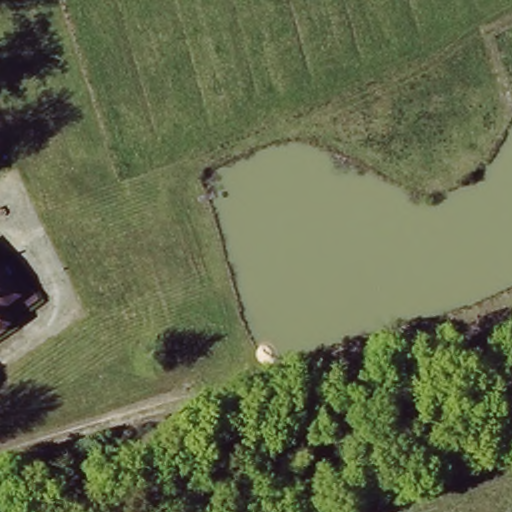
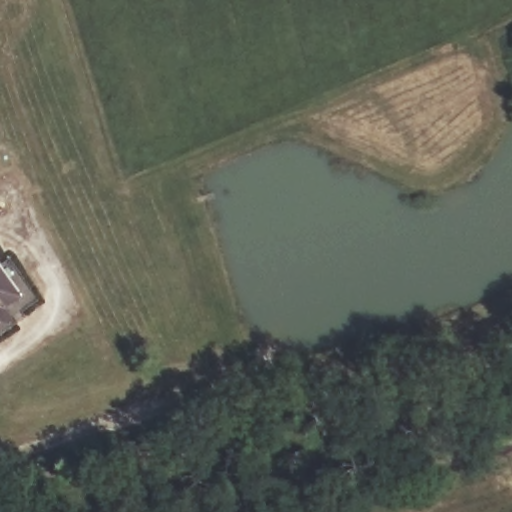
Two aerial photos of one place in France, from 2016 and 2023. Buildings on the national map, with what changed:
unchanged [(7,312),(15,326),(0,338),(0,261),(27,297),(7,312)]

